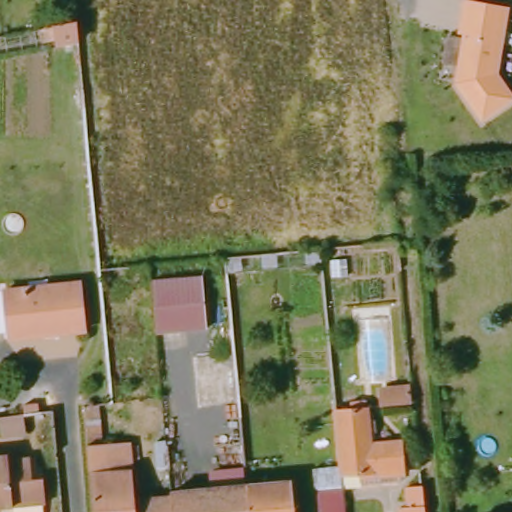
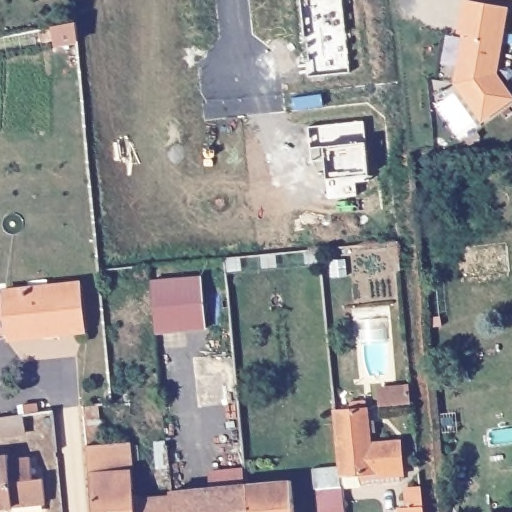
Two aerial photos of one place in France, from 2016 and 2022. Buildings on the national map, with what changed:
new [(300,0),(340,0),(348,72),(309,77),(300,0)]
unchanged [(496,75),(512,96),(512,98),(480,122),(452,83),(460,34),(455,32),(461,0),(472,0),(506,6),(496,75)]
unchanged [(47,55),(45,34),(68,30),(70,52),(47,55)]
new [(312,162),(310,149),(308,126),(364,121),(371,195),(329,199),(325,161),(312,162)]
new [(345,260),(347,276),(332,277),(331,261),(345,260)]
unchanged [(195,277),(205,277),(209,327),(199,328),(160,332),(155,282),(195,277)]
unchanged [(77,285),(82,332),(2,341),(0,324),(0,293),(77,285)]
unchanged [(378,387),(400,387),(400,407),(379,407),(378,387)]
unchanged [(79,405),(95,403),(97,444),(129,443),(132,496),(133,512),(90,512),(82,431),(79,405)]
unchanged [(400,471),(372,473),(374,486),(362,487),(361,480),(339,480),(332,417),(350,416),(349,404),(362,403),(363,413),(367,413),(370,447),(398,444),(400,471)]
unchanged [(9,415),(10,436),(0,436),(0,416),(9,415)]
unchanged [(150,468),(149,447),(160,446),(162,467),(150,468)]
unchanged [(1,453),(2,460),(25,458),(27,480),(42,478),(45,506),(0,510),(0,454),(1,453)]
unchanged [(243,485),(289,480),(290,512),(245,512),(243,485)]
unchanged [(243,485),(245,512),(171,512),(169,493),(207,490),(243,485)]
unchanged [(318,491),(340,488),(342,512),(318,512),(318,491)]
unchanged [(416,512),(403,512),(402,493),(414,492),(416,512)]
unchanged [(132,496),(169,493),(171,512),(133,512),(132,496)]

